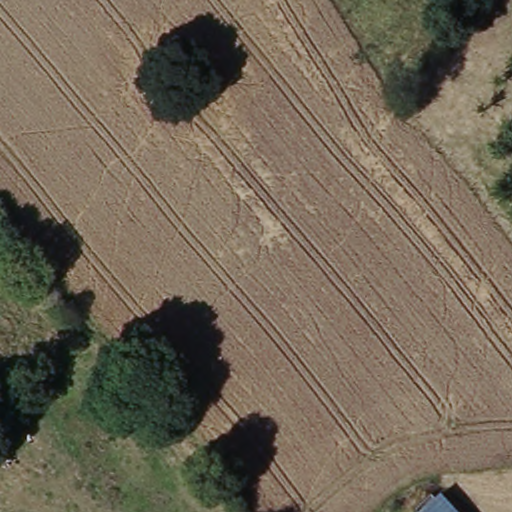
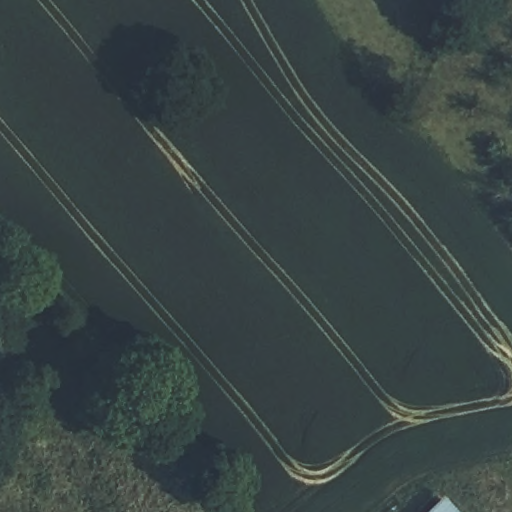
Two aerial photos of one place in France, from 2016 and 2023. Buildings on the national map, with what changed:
unchanged [(460,512),(425,512),(442,494),(460,512)]

